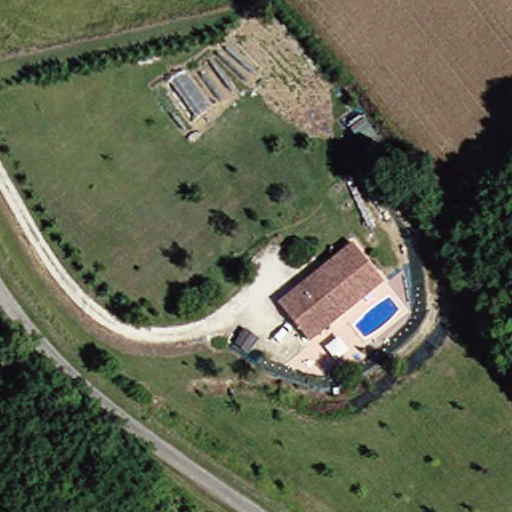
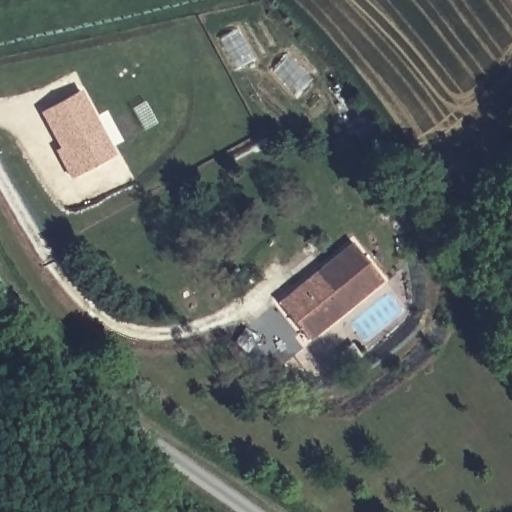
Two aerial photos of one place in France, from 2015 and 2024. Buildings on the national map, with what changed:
new [(73,181),(56,151),(60,149),(41,114),(83,91),(118,154),(73,181)]
unchanged [(381,278),(304,337),(273,297),(350,239),(381,278)]

